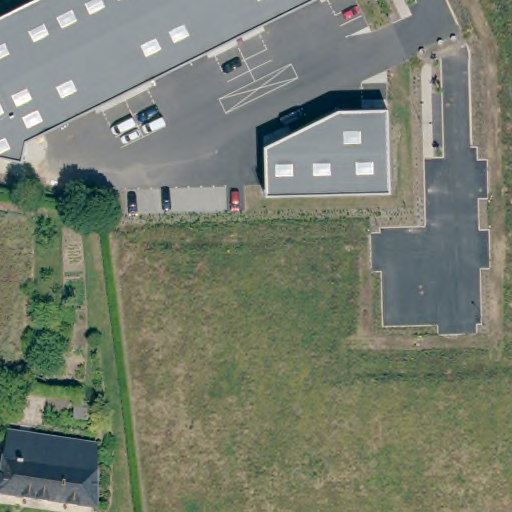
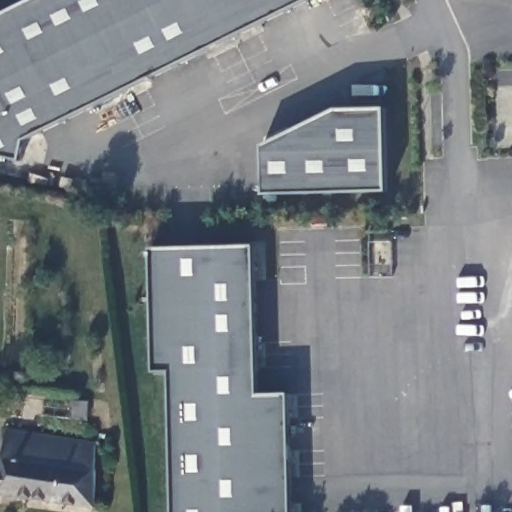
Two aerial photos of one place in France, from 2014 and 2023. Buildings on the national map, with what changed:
unchanged [(0,17),(34,0),(305,0),(26,138),(21,160),(0,156),(0,17)]
unchanged [(263,145),(336,110),(384,109),(388,190),(266,192),(263,145)]
new [(259,394),(288,393),(292,512),(177,512),(173,371),(156,372),(151,247),(254,245),(259,394)]
unchanged [(21,390),(21,399),(9,397),(10,388),(21,390)]
unchanged [(88,403),(88,419),(74,419),(75,402),(88,403)]
unchanged [(96,507),(0,494),(0,487),(8,432),(96,445),(96,507)]

